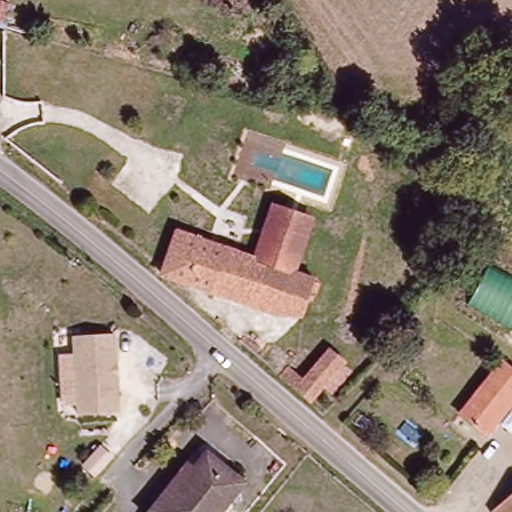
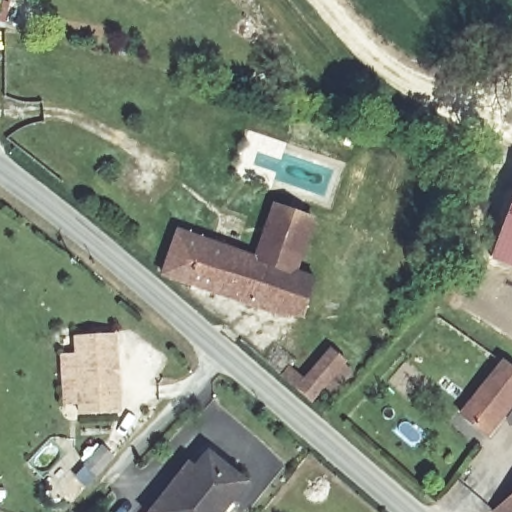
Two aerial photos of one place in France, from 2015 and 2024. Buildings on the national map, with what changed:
new [(512,200),(512,263),(491,255),(512,200)]
unchanged [(310,221),(293,272),(257,261),(275,209),(310,221)]
unchanged [(313,279),(303,314),(275,310),(165,276),(179,237),(257,261),(293,272),(313,279)]
unchanged [(492,268),(512,279),(512,327),(470,303),(492,268)]
unchanged [(80,411),(71,333),(112,329),(121,406),(80,411)]
unchanged [(305,375),(325,348),(346,365),(315,403),(279,373),(287,362),(305,375)]
unchanged [(460,416),(501,366),(510,371),(512,372),(512,405),(483,433),(460,416)]
unchanged [(159,498),(168,503),(210,452),(248,483),(223,512),(149,512),(159,498)]
unchanged [(512,499),(512,512),(498,512),(512,499)]

